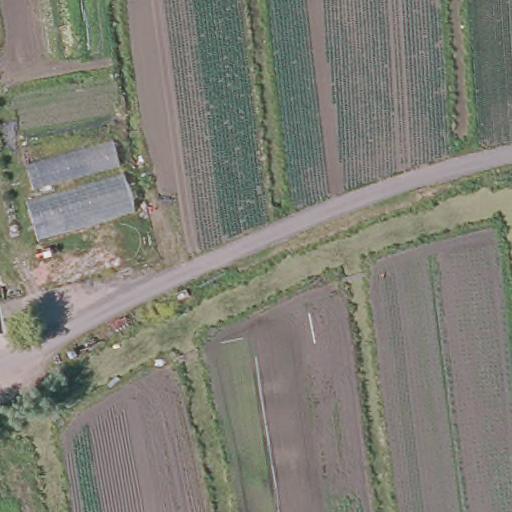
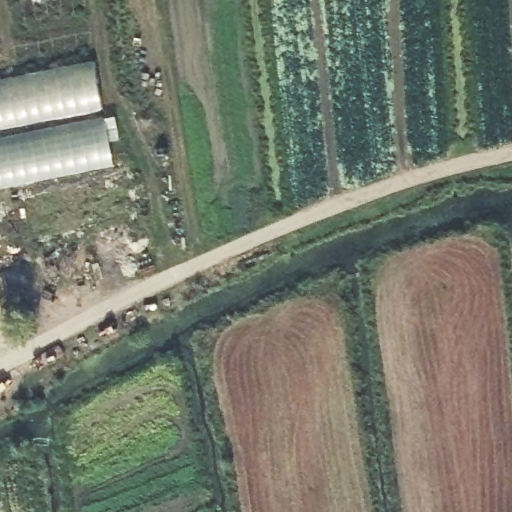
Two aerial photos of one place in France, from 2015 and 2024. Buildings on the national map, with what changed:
new [(0,187),(0,78),(95,60),(115,165),(0,187)]

